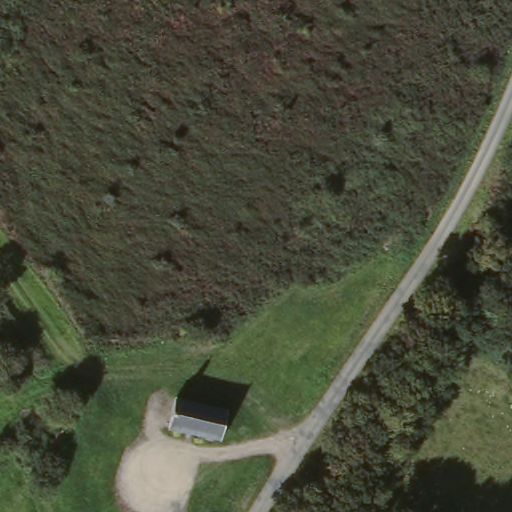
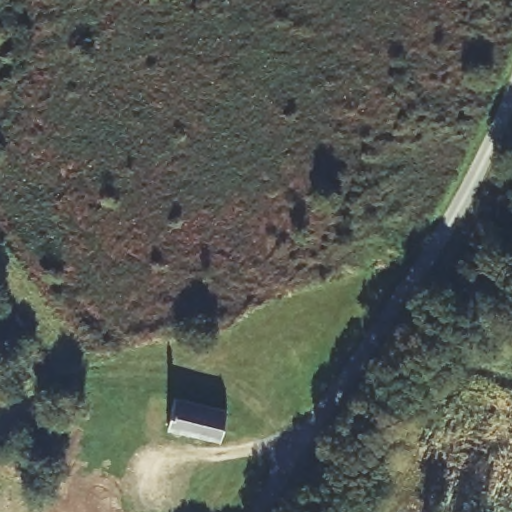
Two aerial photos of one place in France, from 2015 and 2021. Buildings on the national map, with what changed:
unchanged [(222,418),(215,449),(164,436),(171,406),(222,418)]

